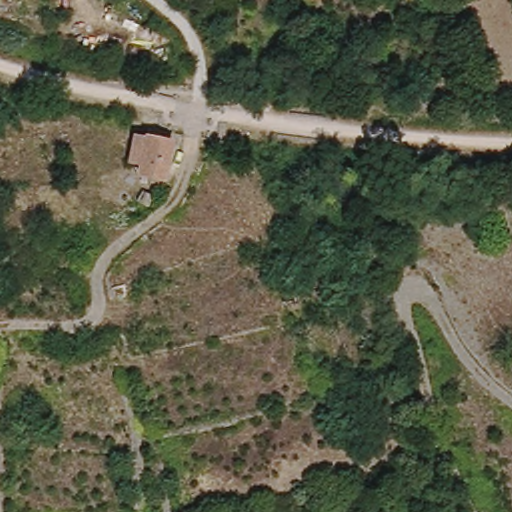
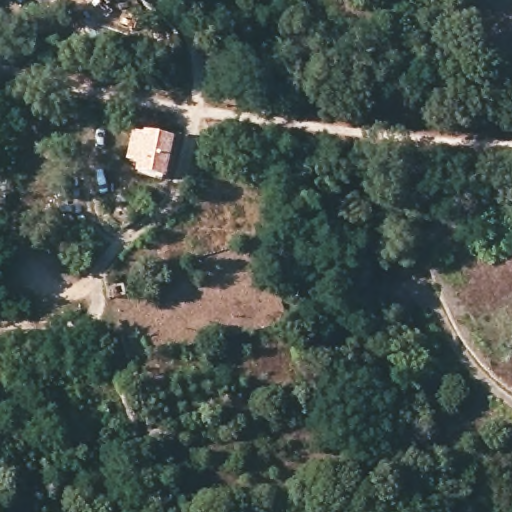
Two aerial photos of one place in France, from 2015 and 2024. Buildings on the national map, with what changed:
unchanged [(170,136),(168,169),(129,167),(132,131),(170,136)]

